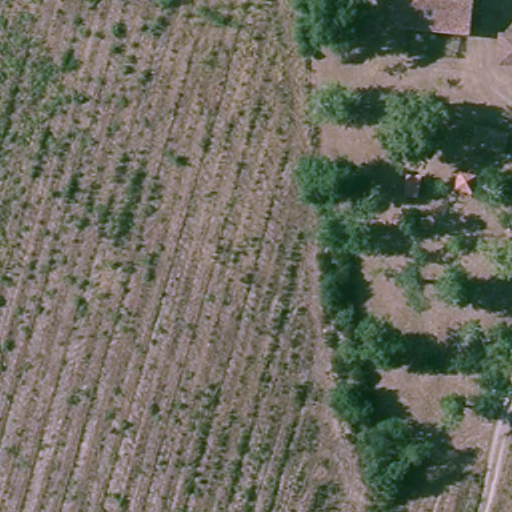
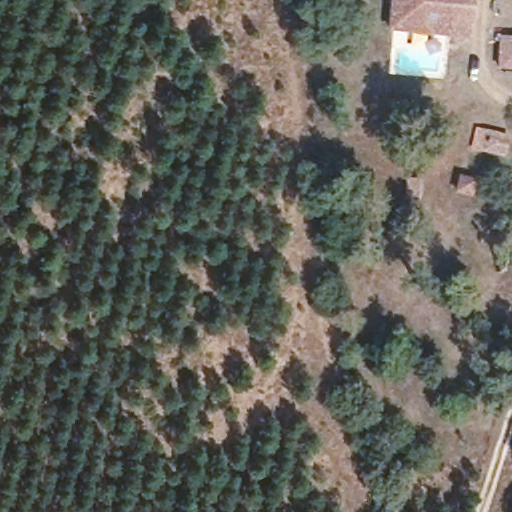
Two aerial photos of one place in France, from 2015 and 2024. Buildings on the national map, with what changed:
unchanged [(465,0),(461,33),(389,26),(392,0),(465,0)]
unchanged [(512,40),(512,72),(494,73),(496,40),(512,40)]
unchanged [(497,187),(492,214),(468,211),(470,184),(497,187)]

